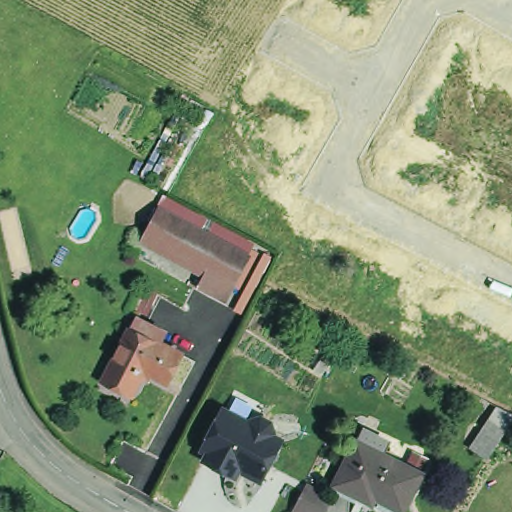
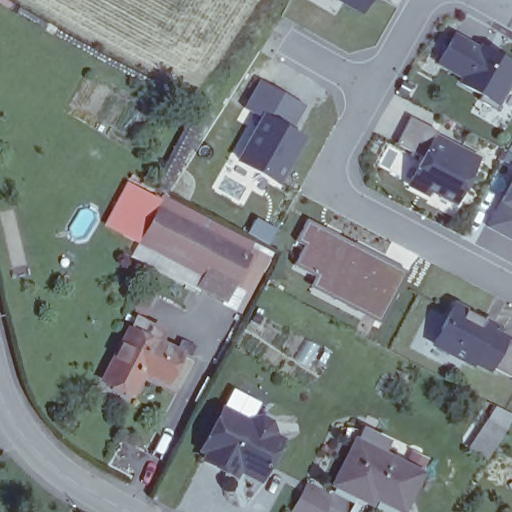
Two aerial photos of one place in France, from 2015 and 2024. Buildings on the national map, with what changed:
new [(362,11),(343,0),(369,0),(362,11)]
new [(457,85),(461,79),(435,65),(453,32),(478,47),(480,44),(512,62),(512,78),(496,106),(457,85)]
new [(292,131),(305,139),(280,187),(235,162),(259,118),(243,108),(259,79),(305,106),(292,131)]
new [(455,205),(430,192),(428,196),(405,184),(419,156),(396,143),(410,118),(436,132),(435,135),(481,158),(455,205)]
new [(512,185),(512,236),(491,225),(512,185)]
unchanged [(202,288),(211,273),(147,239),(154,226),(162,211),(250,258),(242,272),(235,286),(227,301),(202,288)]
new [(304,244),(295,239),(308,218),(372,249),(407,270),(380,322),(310,286),(315,277),(293,264),(304,244)]
new [(493,325),(490,329),(512,340),(512,377),(492,366),(490,369),(474,360),(472,364),(435,344),(455,305),(484,320),(493,325)]
unchanged [(104,377),(108,370),(107,369),(122,339),(130,323),(136,312),(167,327),(161,338),(183,350),(175,365),(169,377),(144,364),(134,383),(133,383),(130,390),(104,377)]
unchanged [(243,476),(240,482),(203,461),(200,437),(222,401),(250,415),(263,408),(276,415),(283,440),(262,484),(243,476)]
unchanged [(467,451),(493,407),(512,418),(512,426),(489,462),(467,451)]
unchanged [(381,501),(376,512),(373,512),(352,501),(355,496),(330,484),(352,442),(357,430),(383,443),(377,454),(417,474),(398,510),(381,501)]
unchanged [(331,489),(342,493),(335,512),(295,512),(307,480),(331,489)]

